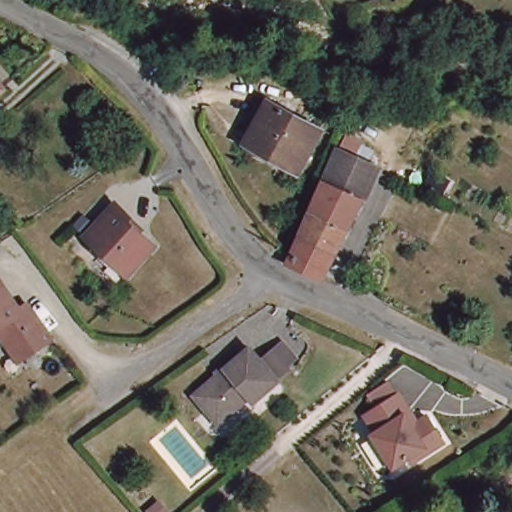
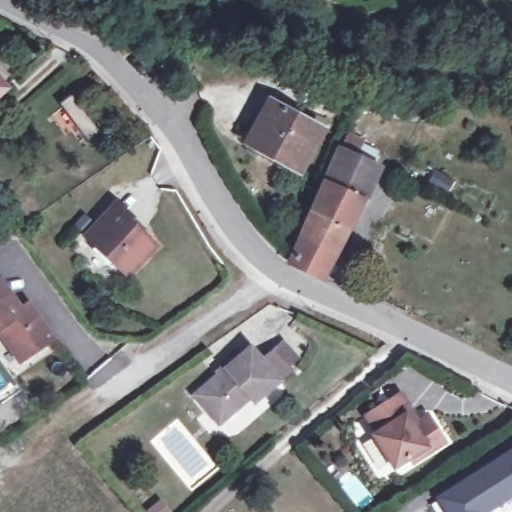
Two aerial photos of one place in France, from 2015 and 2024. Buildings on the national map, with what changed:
unchanged [(189,85),(180,92),(171,81),(180,74),(189,85)]
unchanged [(5,81),(0,85),(0,75),(5,81)]
unchanged [(321,132),(299,173),(249,146),(272,105),(321,132)]
unchanged [(326,185),(340,152),(347,137),(359,143),(352,157),(356,160),(378,170),(377,172),(364,202),(326,185)]
unchanged [(364,202),(335,256),(320,249),(302,241),(326,185),(364,202)]
unchanged [(128,216),(125,220),(152,243),(125,273),(80,236),(112,201),(128,216)]
unchanged [(320,249),(335,256),(322,282),(291,267),(302,241),(320,249)]
unchanged [(60,337),(29,358),(7,327),(0,332),(0,286),(4,283),(13,297),(18,293),(29,310),(37,305),(60,337)]
unchanged [(209,408),(197,394),(252,347),(279,380),(255,400),(252,396),(225,418),(221,422),(209,408)]
unchanged [(398,395),(403,392),(420,420),(429,414),(448,444),(414,467),(410,462),(394,472),(369,435),(361,417),(375,410),(366,395),(389,381),(398,395)]
new [(489,512),(447,512),(437,496),(512,449),(512,496),(489,512)]

